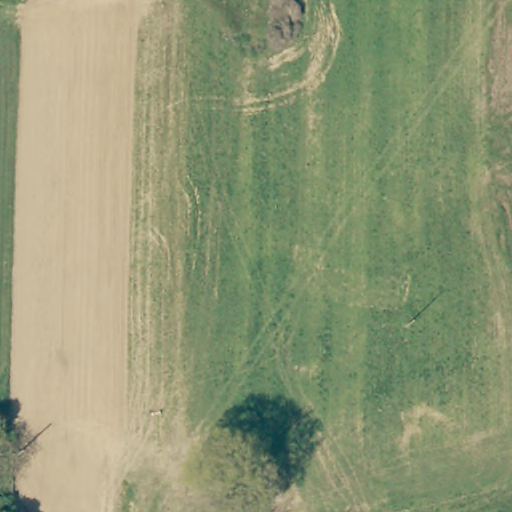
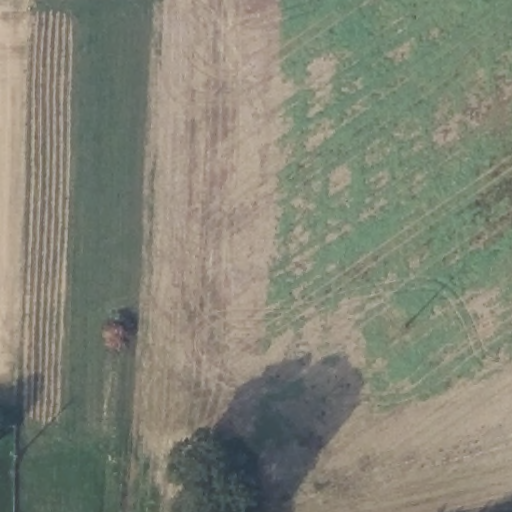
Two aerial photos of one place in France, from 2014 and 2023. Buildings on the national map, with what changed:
[]

